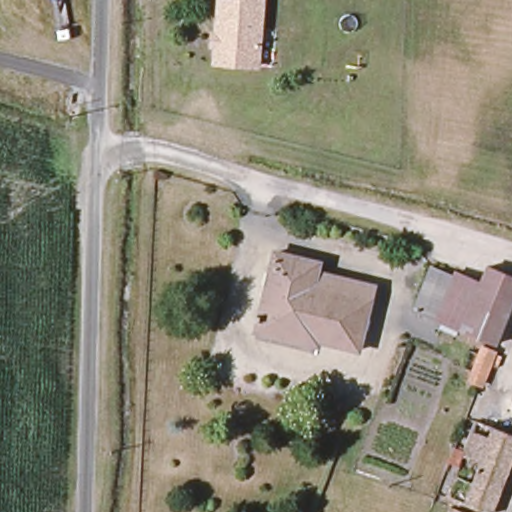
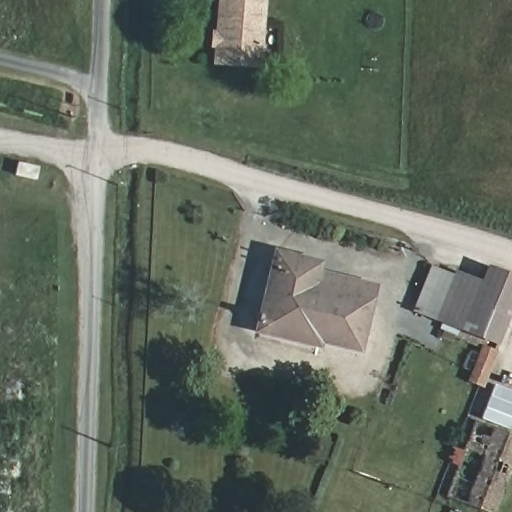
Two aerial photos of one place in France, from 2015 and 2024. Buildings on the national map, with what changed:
unchanged [(217,0),(265,0),(258,68),(213,64),(217,0)]
unchanged [(376,295),(363,353),(253,330),(273,244),(317,255),(312,280),(376,295)]
unchanged [(409,312),(425,266),(453,276),(455,270),(480,280),(485,266),(512,276),(512,288),(495,342),(409,312)]
unchanged [(492,346),(480,383),(468,379),(481,342),(492,346)]
unchanged [(512,436),(512,455),(491,512),(488,512),(446,496),(471,422),(512,436)]
unchanged [(449,512),(448,512),(448,511),(449,512)]

